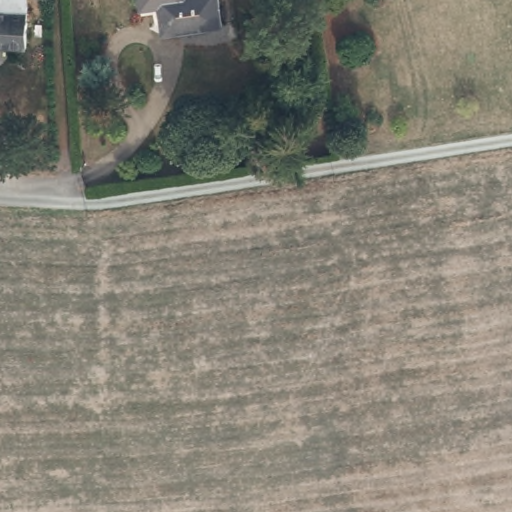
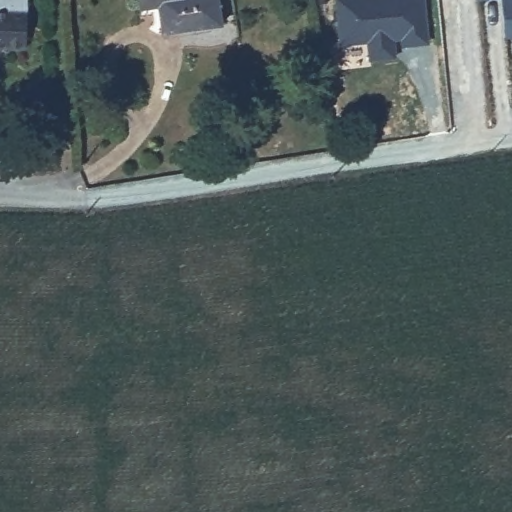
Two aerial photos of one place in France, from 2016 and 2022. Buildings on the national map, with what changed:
unchanged [(161,31),(159,9),(159,0),(219,0),(220,26),(185,29),(161,31)]
new [(403,46),(402,40),(395,40),(396,58),(370,61),(368,43),(340,45),(335,0),(425,0),(429,43),(403,46)]
new [(504,38),(502,0),(512,0),(512,37),(504,38)]
unchanged [(8,9),(24,9),(24,50),(0,50),(0,13),(9,13),(8,9)]

